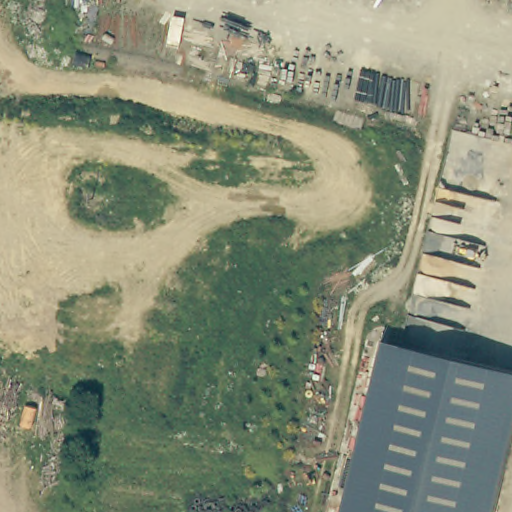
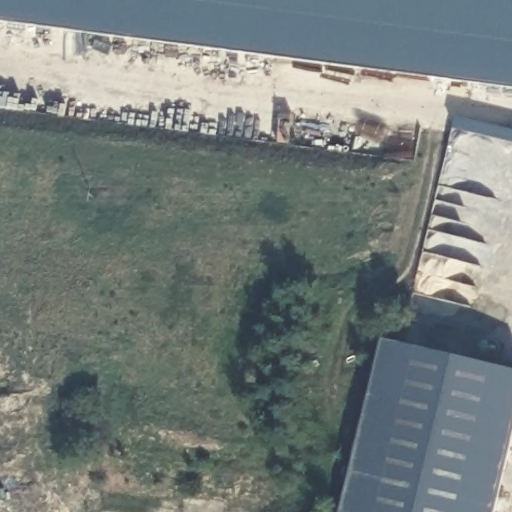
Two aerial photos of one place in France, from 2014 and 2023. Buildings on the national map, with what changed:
new [(0,22),(0,0),(258,0),(251,52),(0,22)]
new [(251,52),(258,0),(512,0),(512,87),(251,52)]
unchanged [(512,371),(512,433),(494,512),(342,512),(383,341),(512,371)]

